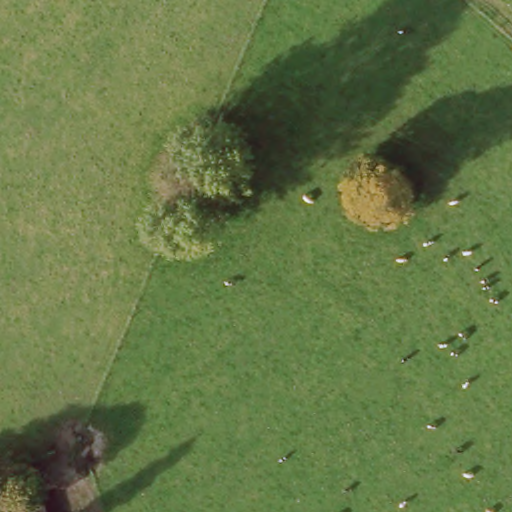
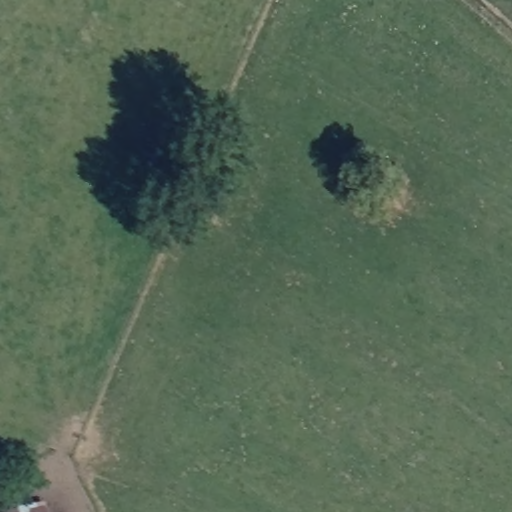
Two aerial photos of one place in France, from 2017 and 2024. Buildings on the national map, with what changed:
unchanged [(44,512),(22,512),(43,507),(44,512)]

